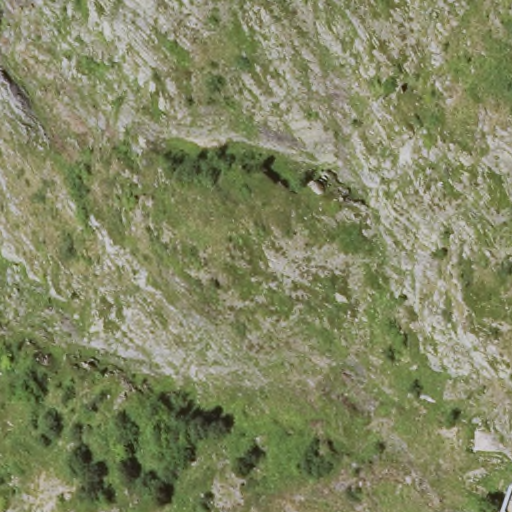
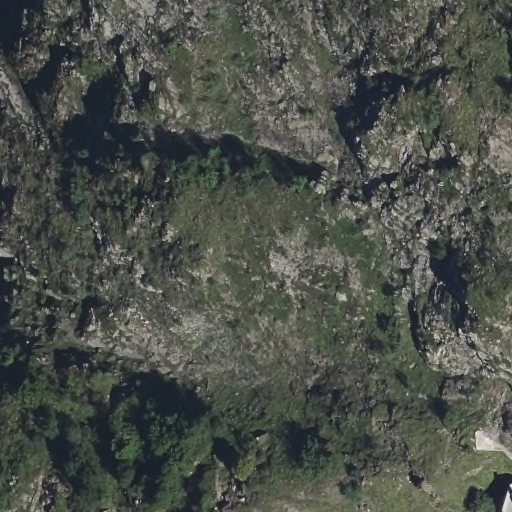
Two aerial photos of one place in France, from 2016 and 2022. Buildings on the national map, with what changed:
unchanged [(512,486),(512,512),(504,512),(501,505),(512,486)]

